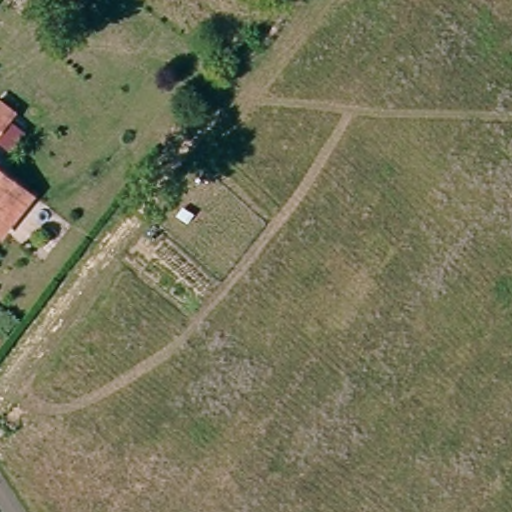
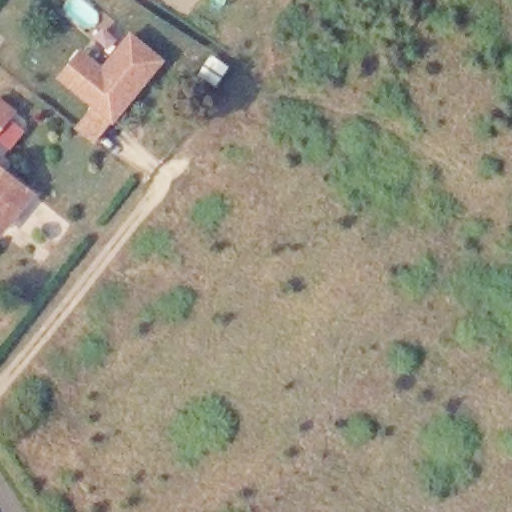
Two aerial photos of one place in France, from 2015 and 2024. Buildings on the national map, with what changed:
new [(97,145),(76,127),(92,107),(56,80),(81,48),(103,65),(131,32),(166,60),(114,124),(97,145)]
new [(11,119),(24,130),(9,149),(0,142),(0,98),(18,110),(11,119)]
demolished [(0,141),(0,113),(13,122),(0,141)]
new [(0,164),(36,194),(0,237),(0,164)]
demolished [(0,224),(0,171),(36,197),(11,232),(0,224)]

